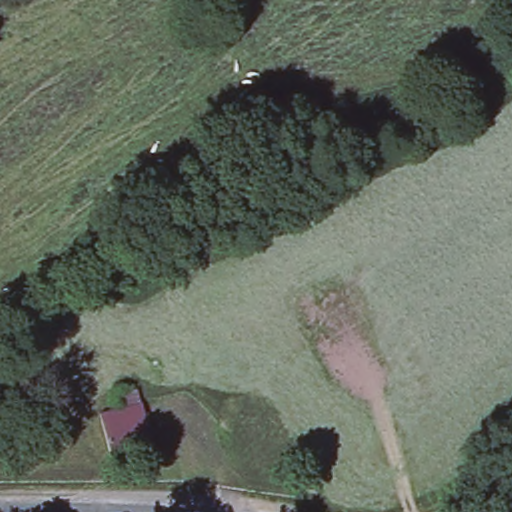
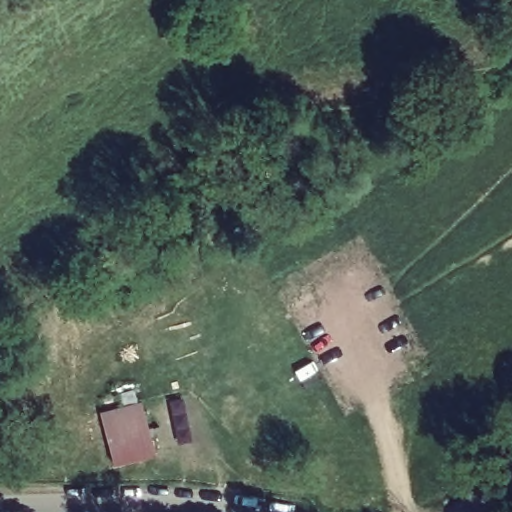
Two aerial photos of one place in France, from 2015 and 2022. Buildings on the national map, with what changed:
unchanged [(508,31),(512,29),(512,42),(508,31)]
unchanged [(149,402),(159,440),(117,452),(106,414),(149,402)]

